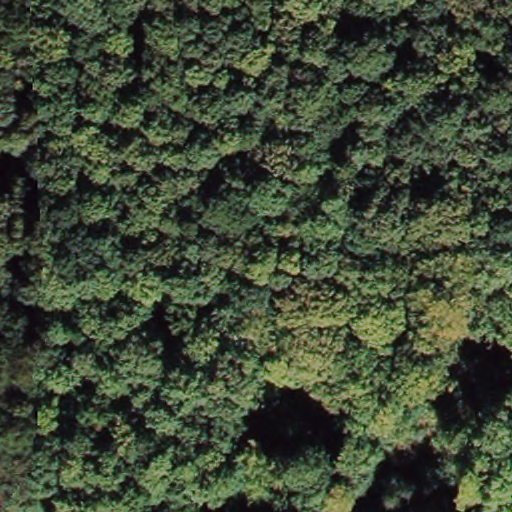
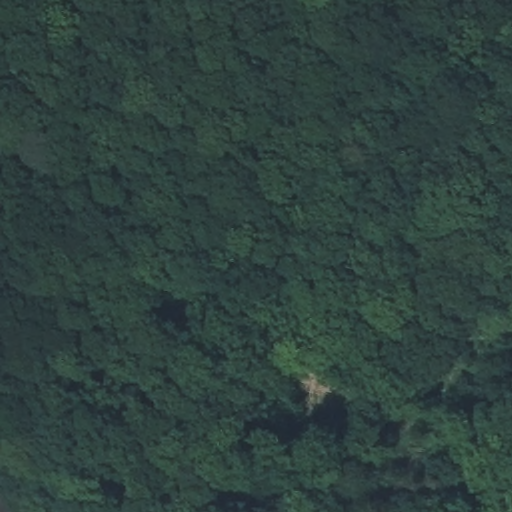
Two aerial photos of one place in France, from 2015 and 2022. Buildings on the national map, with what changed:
unchanged [(1,509),(6,512),(0,512),(0,499),(5,502),(1,509)]

